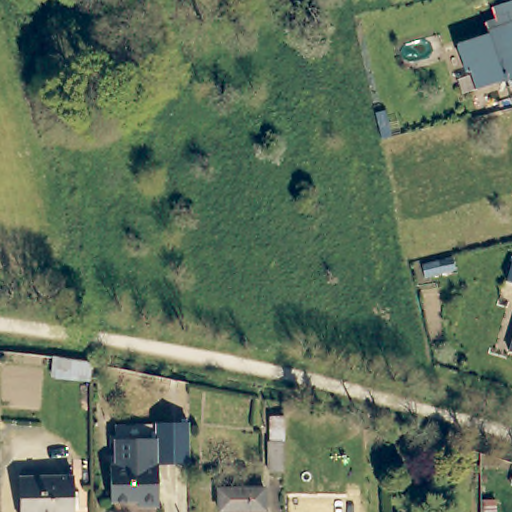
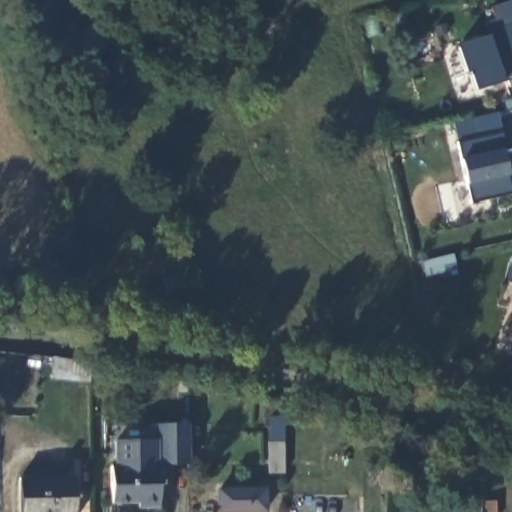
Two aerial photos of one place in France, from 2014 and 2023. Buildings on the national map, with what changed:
unchanged [(508,87),(506,80),(473,90),(467,71),(464,73),(456,48),(488,39),(483,24),(494,20),(490,9),(512,2),(512,86),(508,87)]
new [(507,151),(509,150),(512,160),(512,167),(508,168),(509,175),(512,191),(472,203),(468,186),(461,157),(457,143),(503,132),(507,151)]
unchanged [(509,278),(512,266),(512,281),(509,278)]
unchanged [(505,353),(512,330),(512,355),(505,353)]
unchanged [(268,440),(268,414),(279,415),(280,472),(264,472),(264,440),(268,440)]
unchanged [(151,434),(184,433),(184,473),(153,474),(152,474),(151,434)]
unchanged [(496,481),(496,462),(510,466),(512,467),(512,486),(496,481)]
unchanged [(152,474),(153,474),(154,512),(134,512),(134,511),(105,511),(105,474),(152,474)]
unchanged [(74,480),(74,512),(20,512),(20,480),(74,480)]
unchanged [(263,492),(263,512),(216,512),(216,491),(263,492)]

